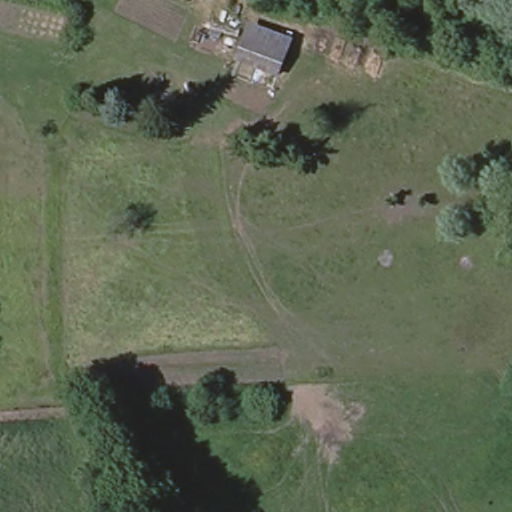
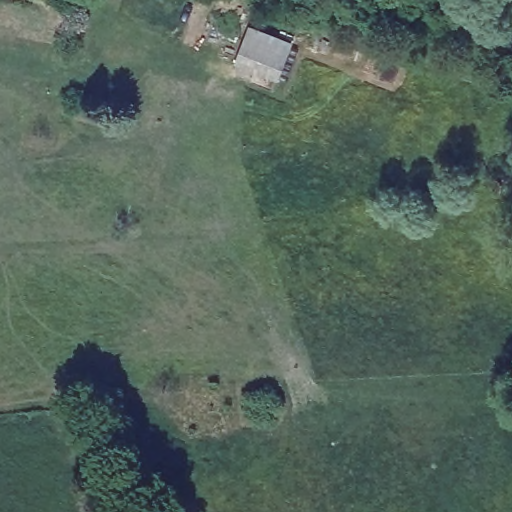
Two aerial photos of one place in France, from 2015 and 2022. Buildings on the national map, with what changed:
unchanged [(234,66),(248,23),(294,38),(281,81),(234,66)]

